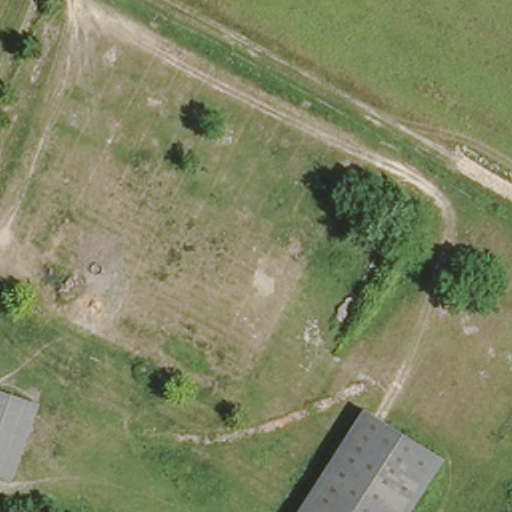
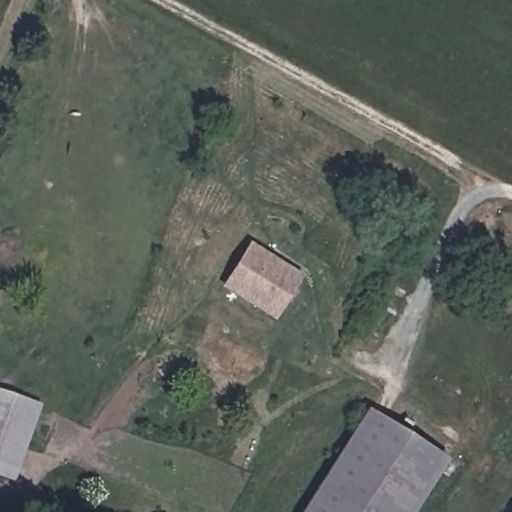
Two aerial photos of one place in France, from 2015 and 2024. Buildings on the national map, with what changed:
new [(273,321),(220,285),(249,241),(301,275),(273,321)]
unchanged [(25,444),(15,440),(0,435),(0,389),(40,401),(25,444)]
unchanged [(367,411),(445,460),(412,512),(304,512),(367,411)]
unchanged [(0,435),(15,440),(25,444),(12,477),(0,474),(0,435)]

